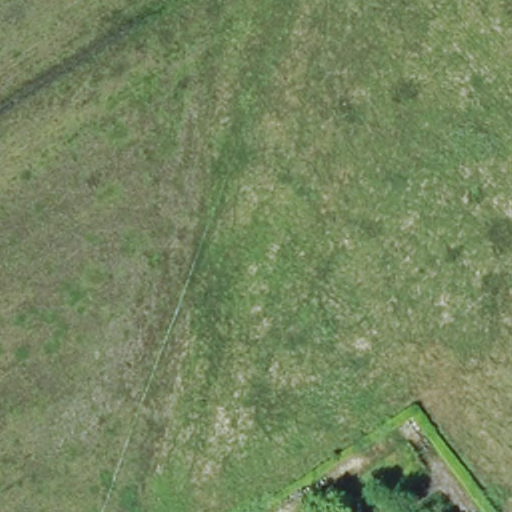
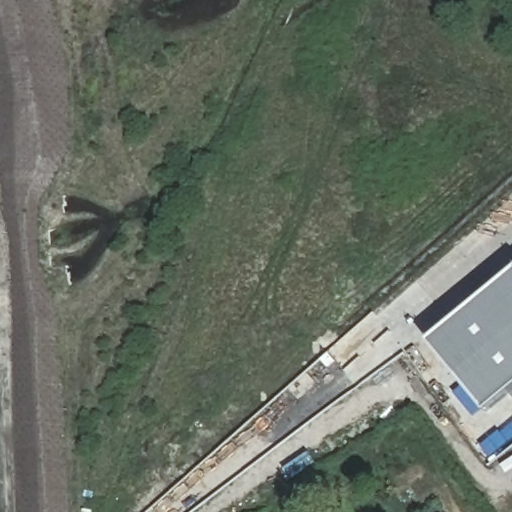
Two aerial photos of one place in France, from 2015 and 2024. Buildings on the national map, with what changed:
new [(512,392),(489,411),(433,342),(512,277),(512,392)]

